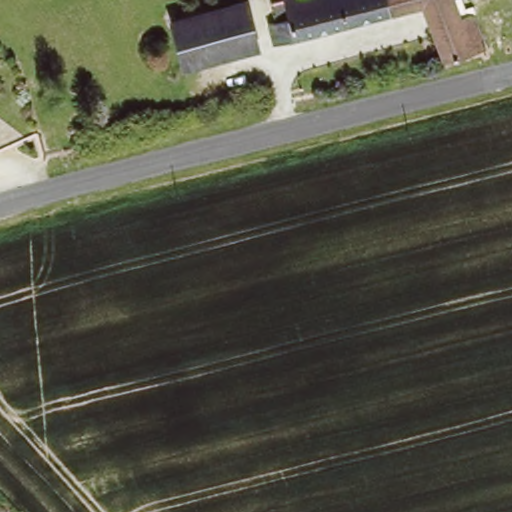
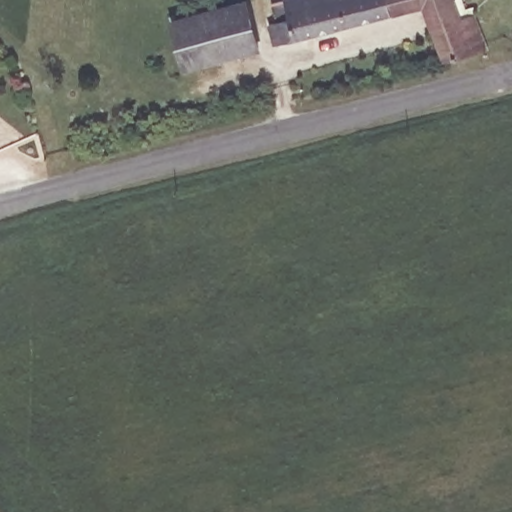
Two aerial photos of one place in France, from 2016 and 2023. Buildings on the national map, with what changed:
unchanged [(490,56),(444,67),(429,10),(276,50),(272,32),(280,30),(275,9),(308,0),(450,0),(451,3),(457,25),(480,19),(490,56)]
unchanged [(185,72),(180,52),(173,26),(247,7),(258,4),(265,29),(253,32),(259,53),(185,72)]

